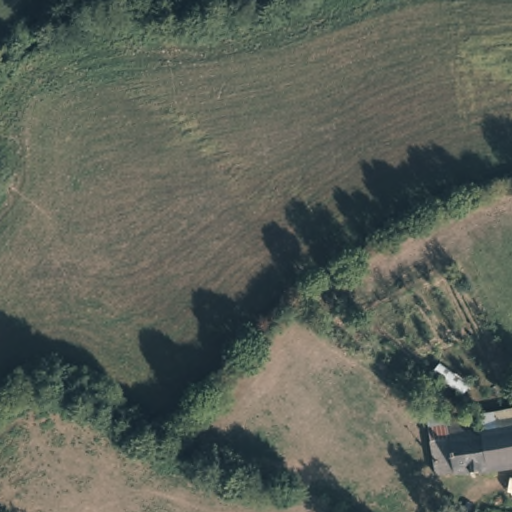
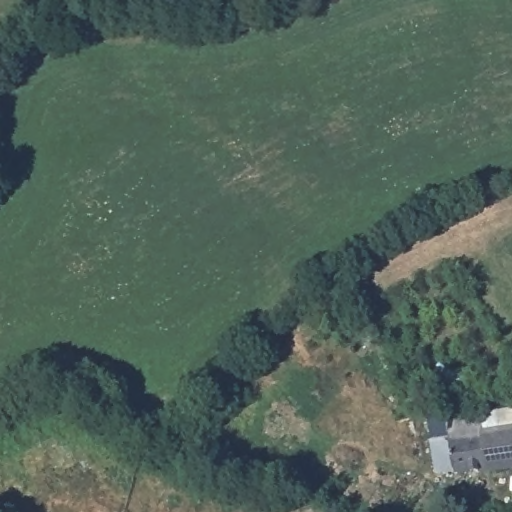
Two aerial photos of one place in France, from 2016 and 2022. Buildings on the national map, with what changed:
unchanged [(432,464),(423,410),(443,407),(447,410),(477,410),(478,421),(512,415),(512,457),(482,461),(432,464)]

